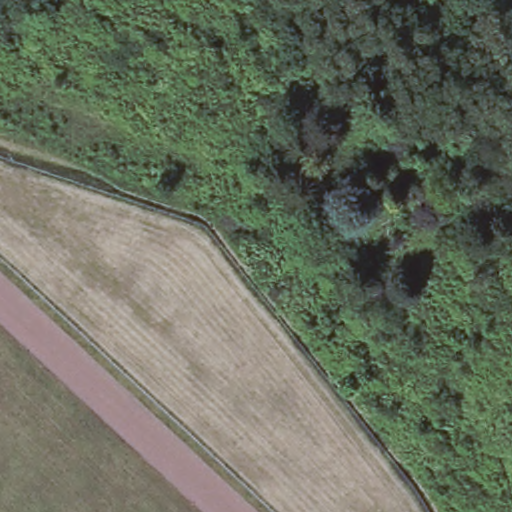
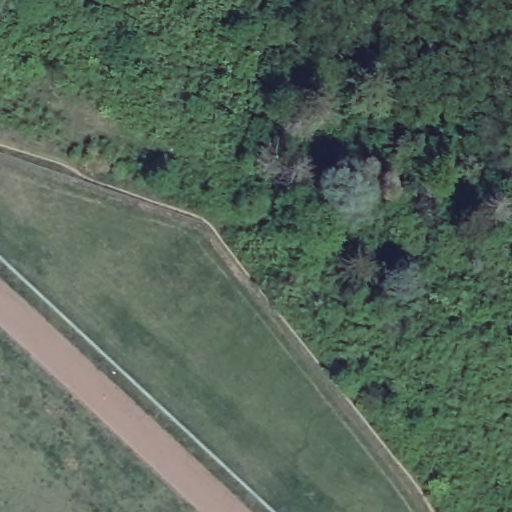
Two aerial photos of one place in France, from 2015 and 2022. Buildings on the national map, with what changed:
unchanged [(423,175),(437,192),(421,206),(406,189),(423,175)]

